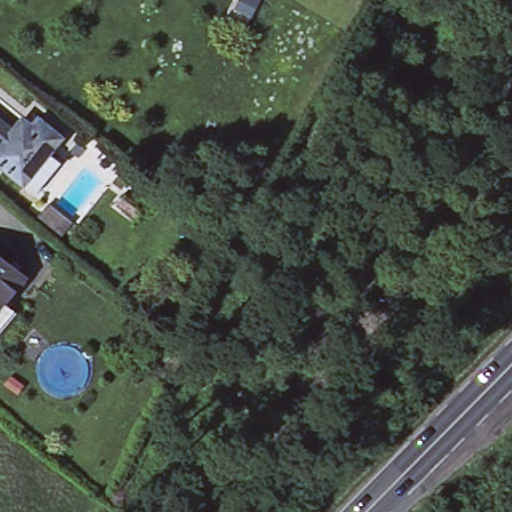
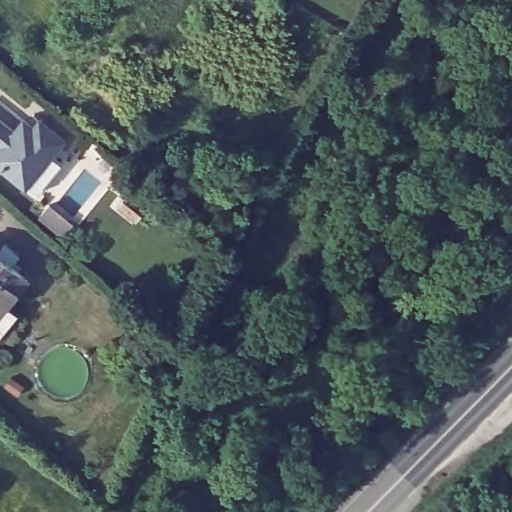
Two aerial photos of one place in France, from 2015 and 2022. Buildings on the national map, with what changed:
unchanged [(31,121),(36,115),(61,134),(49,150),(26,180),(24,182),(0,163),(0,142),(13,126),(22,115),(31,121)]
unchanged [(0,142),(0,116),(13,126),(0,142)]
unchanged [(145,201),(134,215),(116,201),(128,187),(145,201)]
unchanged [(47,201),(71,220),(60,233),(36,215),(47,201)]
unchanged [(0,248),(3,245),(16,256),(8,266),(25,280),(6,305),(18,313),(0,336),(0,248)]

